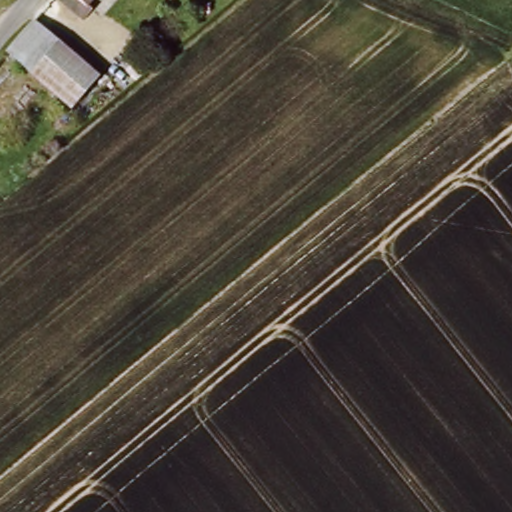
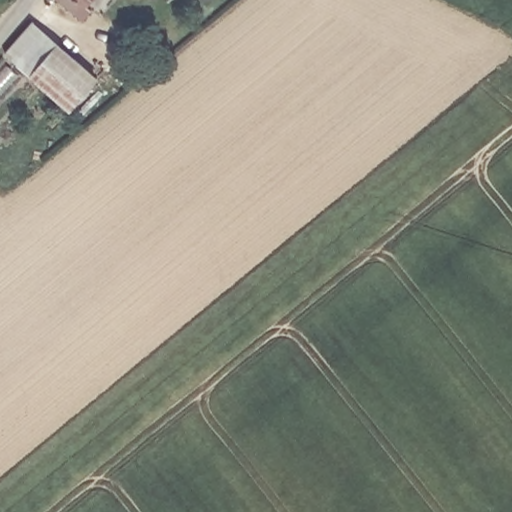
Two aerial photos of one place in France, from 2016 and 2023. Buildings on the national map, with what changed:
unchanged [(80,12),(66,0),(90,0),(80,12)]
unchanged [(81,60),(60,86),(10,45),(32,20),(81,60)]

